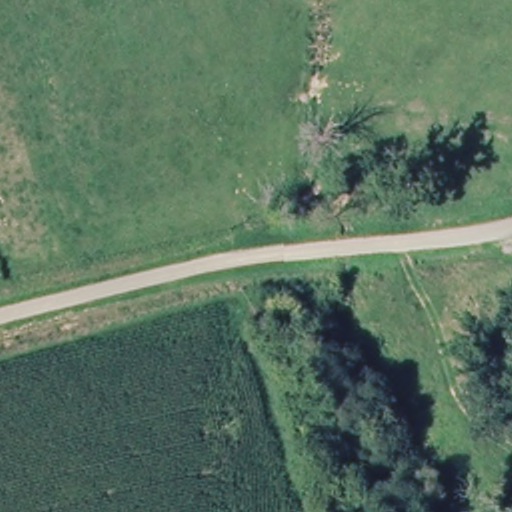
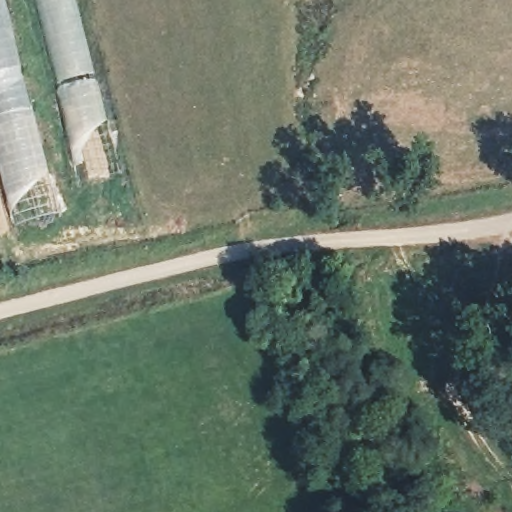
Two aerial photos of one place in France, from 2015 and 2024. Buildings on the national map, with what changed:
new [(59,212),(13,228),(0,175),(0,0),(4,0),(59,212)]
new [(92,72),(56,82),(34,0),(75,0),(92,72)]
new [(56,82),(92,72),(121,175),(79,186),(56,82)]

